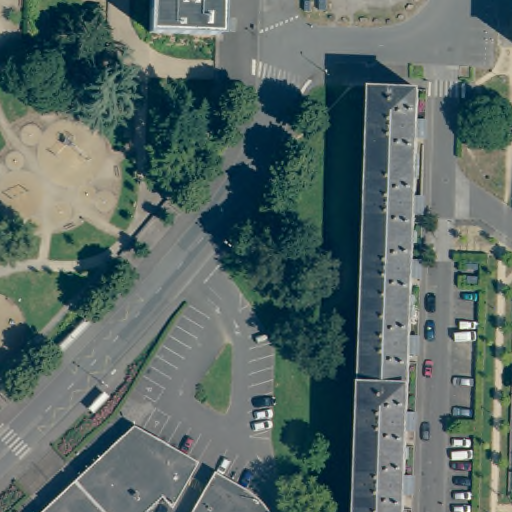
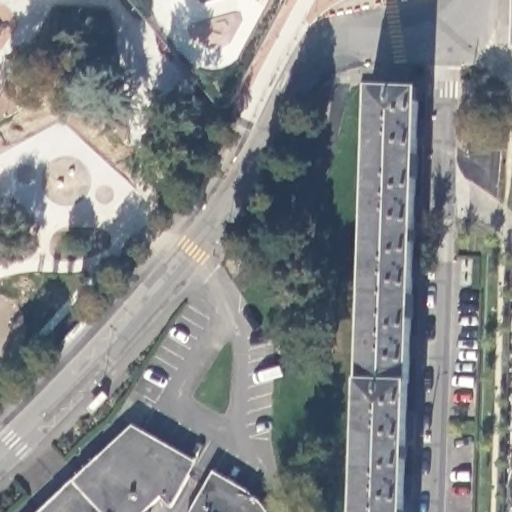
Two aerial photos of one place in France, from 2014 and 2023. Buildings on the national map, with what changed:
demolished [(149,32),(150,1),(151,0),(219,0),(218,35),(149,32)]
unchanged [(419,92),(417,122),(426,123),(425,139),(417,139),(415,169),(369,167),(372,89),(419,92)]
unchanged [(415,169),(415,199),(423,199),(423,202),(423,215),(415,215),(413,245),(366,242),(369,167),(415,169)]
unchanged [(413,245),(413,262),(421,263),(420,279),(412,278),(410,308),(363,307),(366,242),(413,245)]
unchanged [(410,308),(410,338),(418,339),(418,355),(410,354),(409,385),(360,385),(363,307),(410,308)]
unchanged [(409,385),(407,415),(416,415),(415,430),(406,430),(406,447),(359,447),(360,385),(409,385)]
unchanged [(185,465),(167,497),(156,487),(130,512),(47,512),(131,435),(185,465)]
unchanged [(405,478),(414,478),(413,495),(405,494),(404,512),(356,512),(359,447),(406,447),(405,478)]
unchanged [(240,506),(251,512),(199,512),(212,490),(240,506)]

